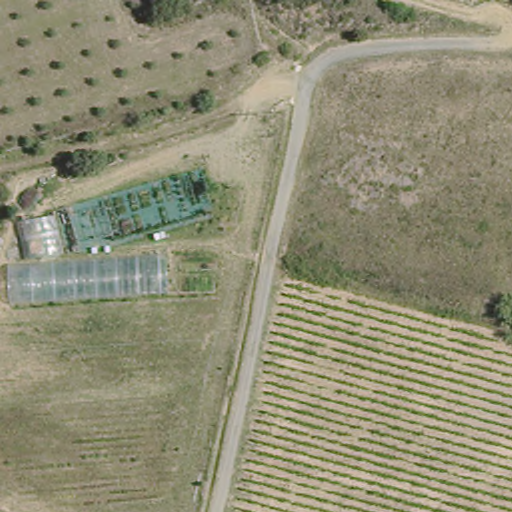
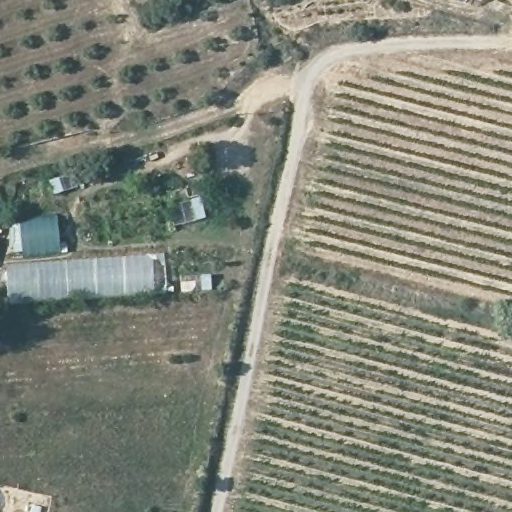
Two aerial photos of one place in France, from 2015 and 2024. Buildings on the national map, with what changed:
unchanged [(26,263),(15,221),(55,215),(65,260),(164,255),(167,290),(10,301),(8,265),(26,263)]

